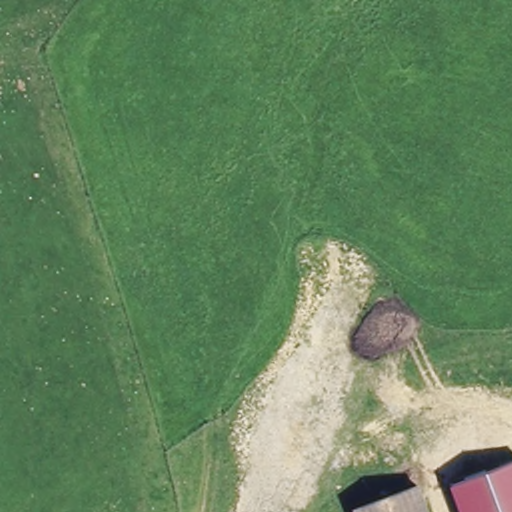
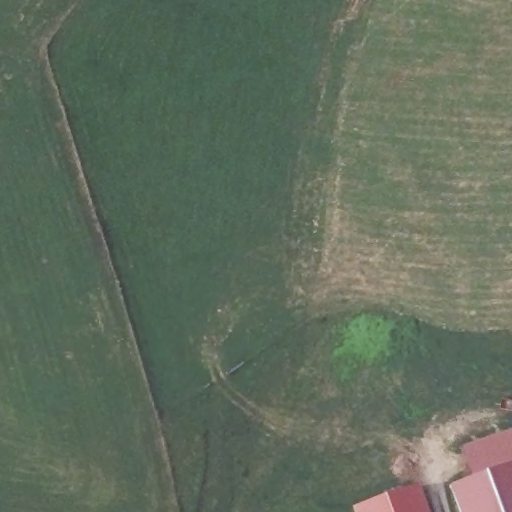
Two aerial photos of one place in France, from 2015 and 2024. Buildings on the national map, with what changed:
new [(473,478),(462,448),(512,431),(512,464),(473,478)]
unchanged [(512,464),(512,512),(460,512),(450,486),(512,464)]
unchanged [(414,491),(422,512),(359,512),(414,491)]

